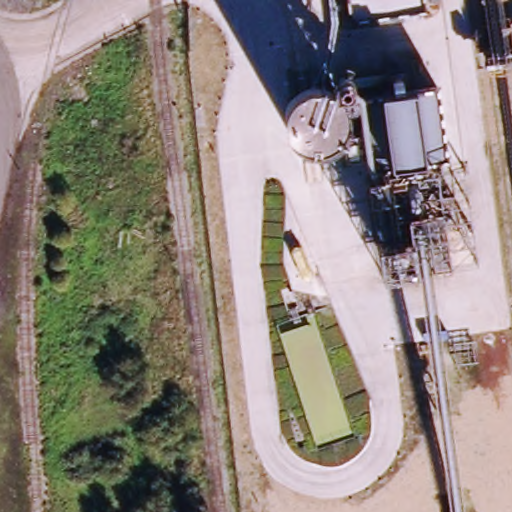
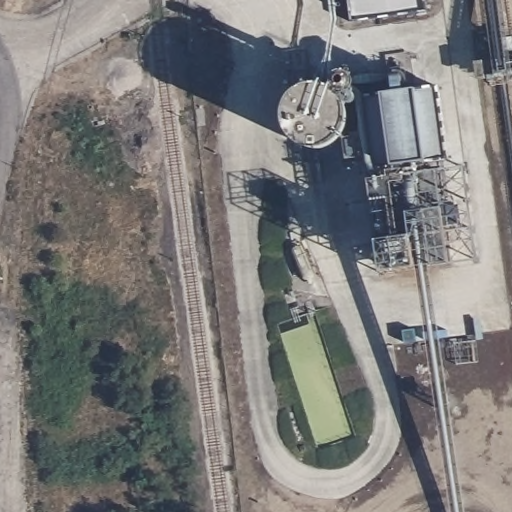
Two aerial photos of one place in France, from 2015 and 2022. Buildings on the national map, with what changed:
unchanged [(348,0),(422,0),(424,11),(350,23),(348,0)]
unchanged [(314,79),(315,78),(318,78),(320,79),(321,79),(322,79),(325,79),(327,80),(330,80),(332,81),(334,83),(335,84),(335,82),(335,81),(334,81),(334,80),(334,79),(334,78),(334,77),(334,76),(334,75),(334,74),(335,74),(335,72),(335,71),(336,71),(337,70),(338,69),(339,69),(340,68),(340,67),(342,67),(343,67),(344,67),(345,67),(347,67),(347,68),(349,68),(349,69),(350,69),(350,70),(351,70),(352,70),(352,71),(352,72),(353,72),(353,74),(354,74),(354,75),(354,76),(354,77),(354,79),(354,80),(354,81),(353,81),(353,82),(352,83),(352,84),(351,85),(350,85),(350,86),(349,86),(348,86),(347,87),(346,87),(345,87),(344,88),(342,87),(341,87),(340,87),(339,86),(341,89),(342,90),(344,92),(345,94),(346,96),(347,98),(348,100),(349,102),(350,105),(350,107),(350,110),(350,111),(350,114),(350,116),(349,119),(349,121),(348,123),(347,125),(346,127),(345,130),(344,131),(342,133),(340,135),(339,136),(337,138),(335,140),(333,140),(331,141),(329,142),(327,144),(325,144),(322,145),(320,145),(317,145),(315,145),(313,145),(310,145),(309,144),(306,143),(304,142),(302,141),(300,140),(298,139),(296,137),(294,136),(292,135),(291,132),(290,131),(289,130),(288,129),(287,127),(286,125),(285,122),(285,120),(284,118),(284,116),(284,114),(283,111),(284,109),(284,106),(284,105),(285,102),(285,100),(287,97),(287,95),(289,94),(290,91),(291,90),(293,88),(295,86),(297,85),(298,84),(300,82),(302,81),(305,80),(307,80),(309,79),(311,79),(314,79)]
unchanged [(439,80),(450,155),(370,166),(360,91),(439,80)]
unchanged [(344,134),(360,132),(362,153),(347,155),(344,134)]
unchanged [(450,155),(450,170),(465,168),(477,260),(385,277),(370,166),(450,155)]

